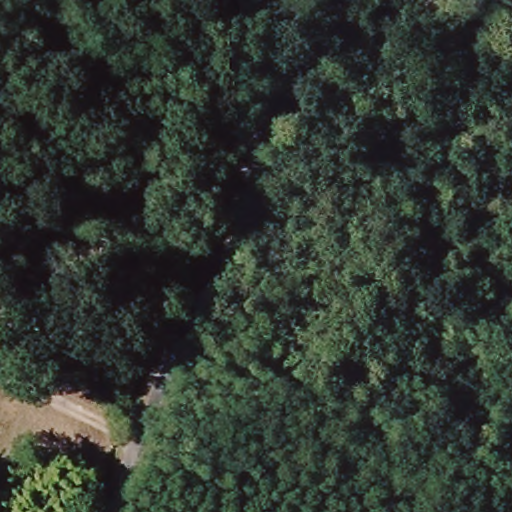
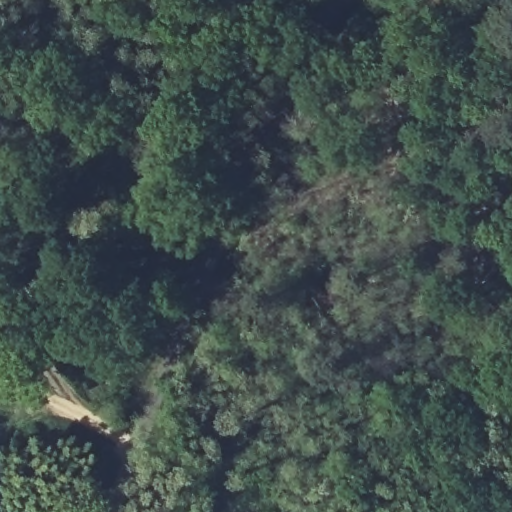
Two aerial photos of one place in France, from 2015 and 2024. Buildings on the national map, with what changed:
unchanged [(444,472),(438,497),(387,487),(391,463),(444,472)]

